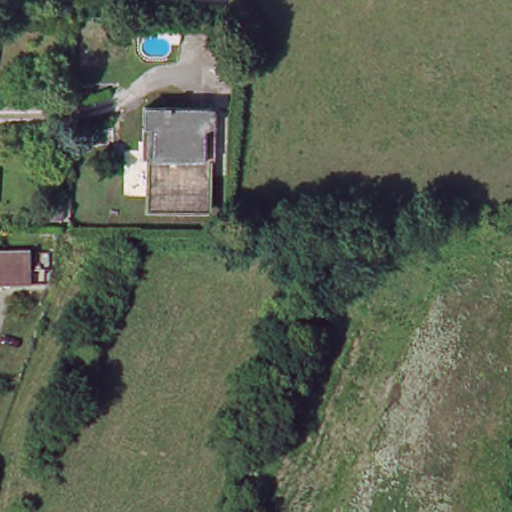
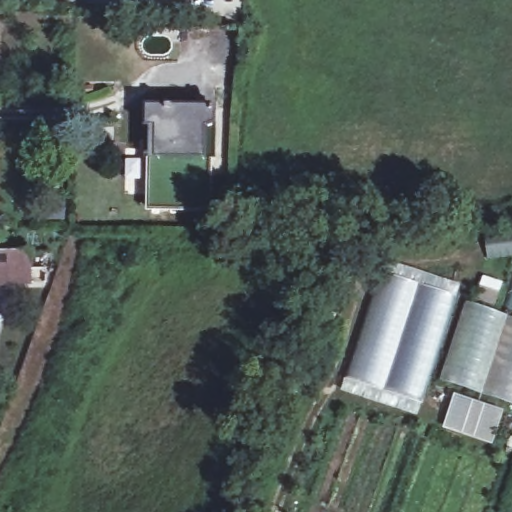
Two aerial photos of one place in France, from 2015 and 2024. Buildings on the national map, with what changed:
unchanged [(149,108),(216,109),(211,211),(151,209),(153,128),(149,127),(149,108)]
new [(491,259),(489,243),(512,241),(512,257),(491,259)]
unchanged [(0,285),(0,252),(33,252),(33,284),(0,285)]
demolished [(438,272),(341,512),(296,512),(399,260),(438,272)]
new [(347,377),(381,270),(455,293),(421,400),(347,377)]
new [(462,301),(512,317),(512,404),(440,381),(462,301)]
new [(504,410),(493,442),(443,427),(454,393),(504,410)]

